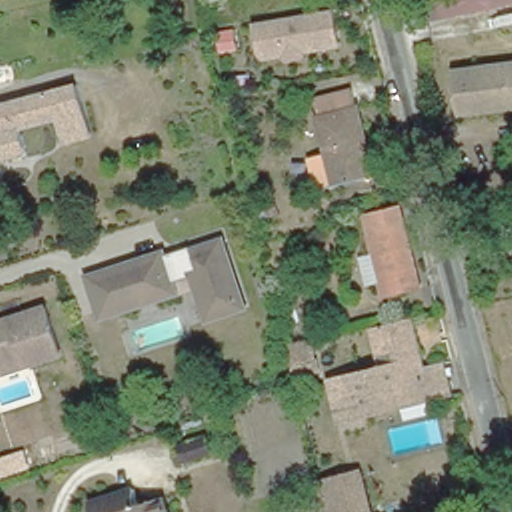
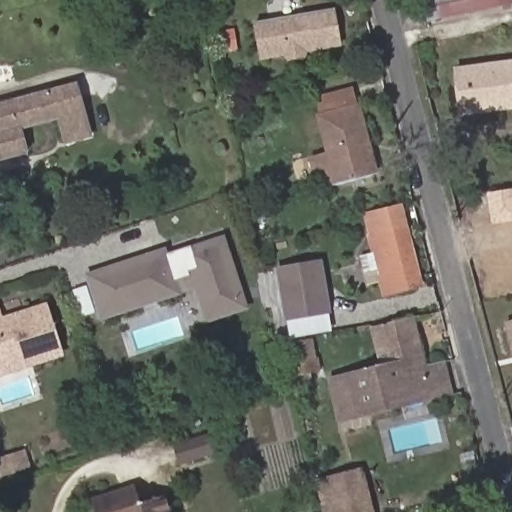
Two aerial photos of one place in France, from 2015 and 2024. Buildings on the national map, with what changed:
unchanged [(429,0),(501,0),(502,3),(434,17),(429,0)]
unchanged [(339,43),(305,49),(303,56),(291,58),(287,53),(263,58),(256,23),(268,21),(271,20),(273,20),(326,9),(332,8),(339,43)]
unchanged [(457,71),(512,64),(512,106),(463,112),(457,71)]
unchanged [(75,84),(89,133),(66,140),(59,117),(19,128),(25,150),(0,157),(0,105),(75,84)]
unchanged [(330,156),(319,118),(321,117),(317,100),(350,91),(355,108),(358,107),(375,171),(325,185),(320,168),(318,160),(330,156)]
new [(487,193),(512,189),(512,222),(492,224),(487,193)]
unchanged [(415,288),(378,298),(373,283),(364,285),(356,256),(370,252),(365,235),(367,234),(363,216),(394,209),(415,288)]
unchanged [(104,315),(96,289),(93,280),(109,274),(164,256),(166,263),(220,246),(232,285),(241,312),(204,324),(201,317),(194,296),(188,277),(173,282),(176,292),(178,298),(106,322),(104,315)]
new [(290,339),(277,267),(321,260),(333,331),(290,339)]
unchanged [(0,380),(0,310),(5,326),(50,311),(65,359),(30,370),(5,378),(0,380)]
new [(512,321),(512,352),(505,322),(512,321)]
unchanged [(340,426),(330,386),(401,368),(391,330),(411,325),(424,373),(444,368),(452,398),(431,404),(409,409),(364,421),(340,426)]
unchanged [(318,374),(297,378),(294,365),(292,365),(288,351),(310,346),(318,374)]
unchanged [(181,462),(175,446),(207,437),(212,452),(181,462)]
unchanged [(325,512),(317,480),(351,471),(361,512),(325,512)]
unchanged [(135,488),(141,503),(164,496),(169,512),(96,512),(94,502),(135,488)]

